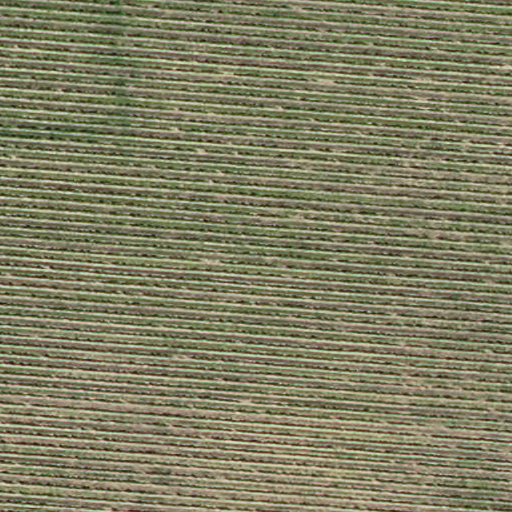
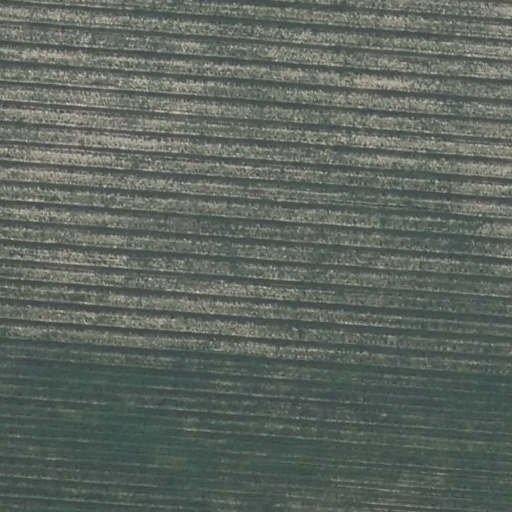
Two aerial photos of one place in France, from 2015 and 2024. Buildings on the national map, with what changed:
[]

